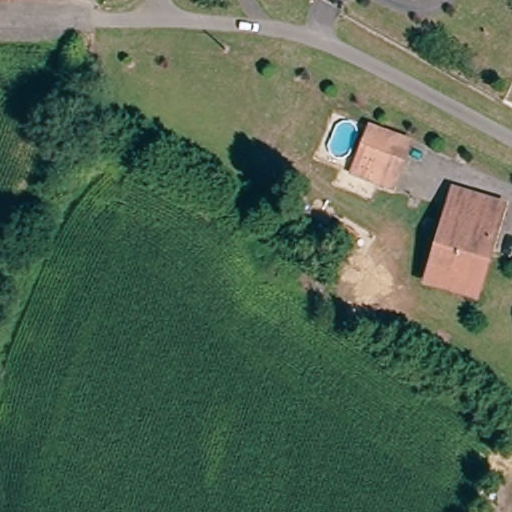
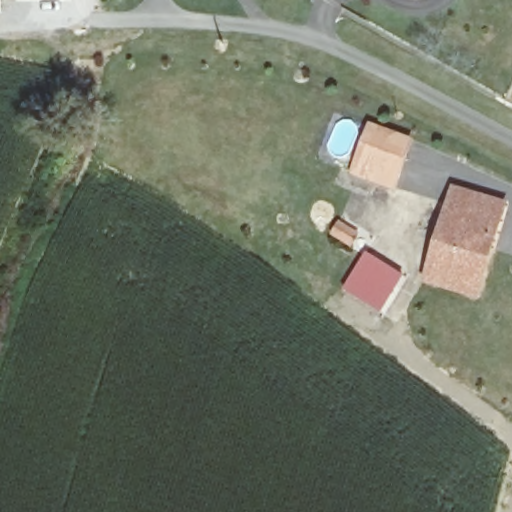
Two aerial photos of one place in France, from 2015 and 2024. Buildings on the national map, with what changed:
unchanged [(371,181),(354,175),(371,130),(409,144),(395,178),(390,188),(371,181)]
unchanged [(426,263),(448,204),(455,186),(472,193),(512,208),(512,213),(500,242),(490,238),(473,283),(426,263)]
unchanged [(476,299),(420,279),(426,263),(473,283),(490,238),(500,242),(476,299)]
new [(370,251),(406,276),(390,300),(380,314),(344,289),(353,275),(370,251)]

